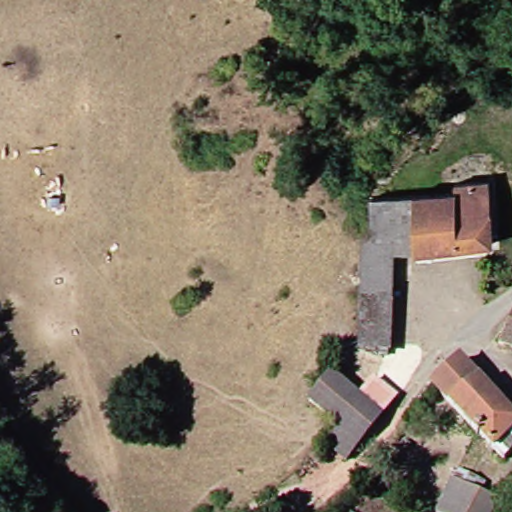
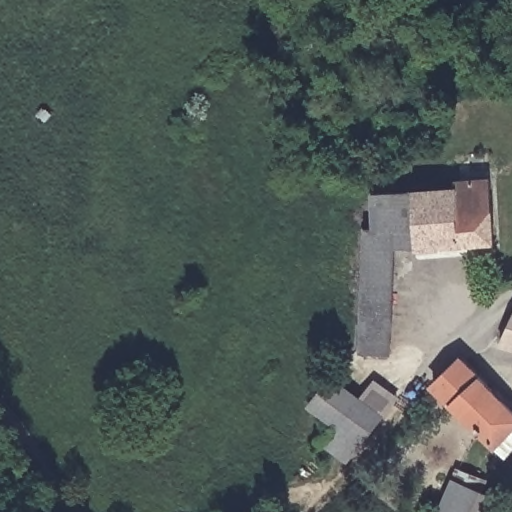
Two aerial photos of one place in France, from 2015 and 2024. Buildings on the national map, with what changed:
unchanged [(452,194),(452,185),(487,183),(490,244),(414,251),(415,232),(416,195),(452,194)]
unchanged [(415,232),(378,232),(361,232),(360,195),(416,195),(415,232)]
unchanged [(361,232),(378,232),(383,325),(385,354),(365,353),(363,294),(361,232)]
unchanged [(512,310),(512,351),(490,345),(512,310)]
unchanged [(320,467),(310,459),(330,427),(305,408),(338,362),(355,374),(391,400),(378,415),(341,461),(330,455),(320,467)]
unchanged [(511,410),(512,412),(512,432),(497,449),(433,394),(460,366),(511,410)]
unchanged [(477,494),(489,500),(485,512),(435,512),(454,474),(481,484),(477,494)]

